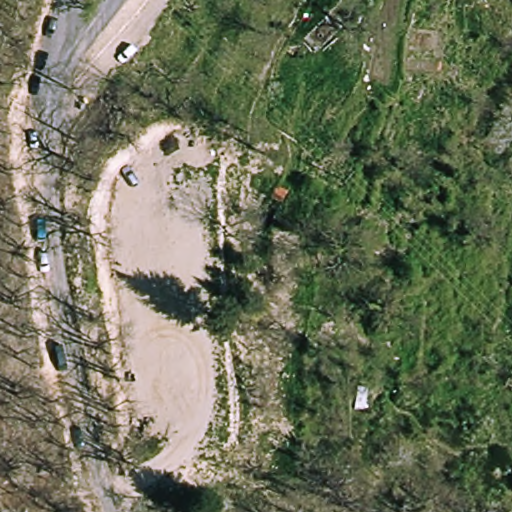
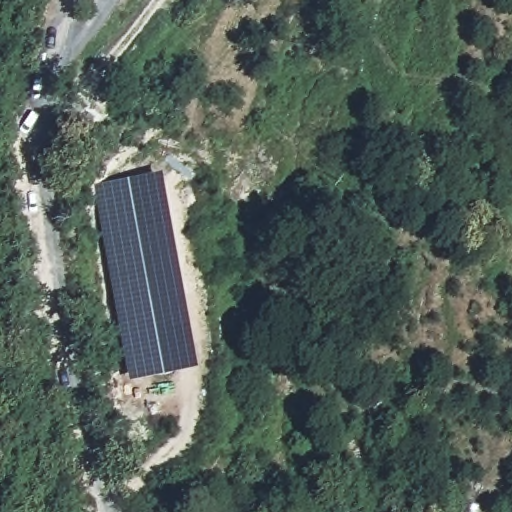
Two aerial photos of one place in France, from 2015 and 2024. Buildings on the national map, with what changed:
new [(131,381),(94,184),(164,171),(201,367),(131,381)]
demolished [(298,436),(274,432),(281,368),(307,366),(298,436)]

